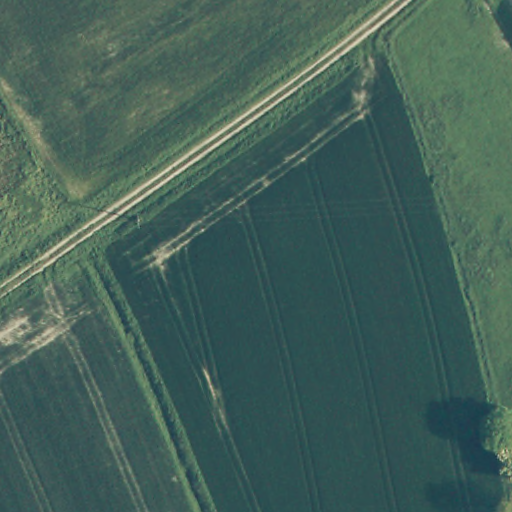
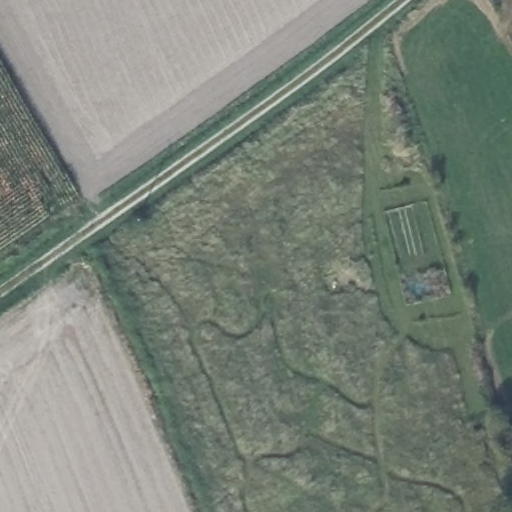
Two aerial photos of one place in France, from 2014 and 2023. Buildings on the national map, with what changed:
[]

